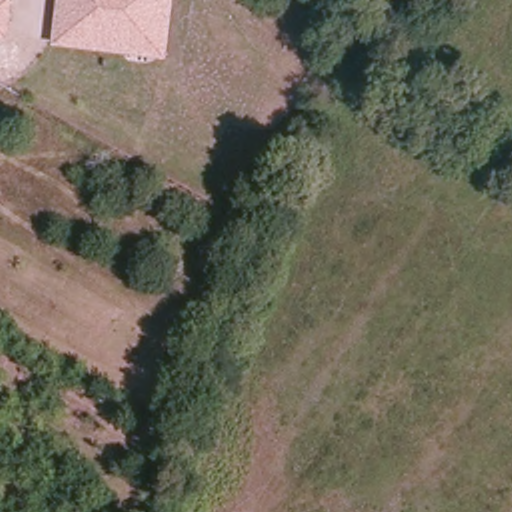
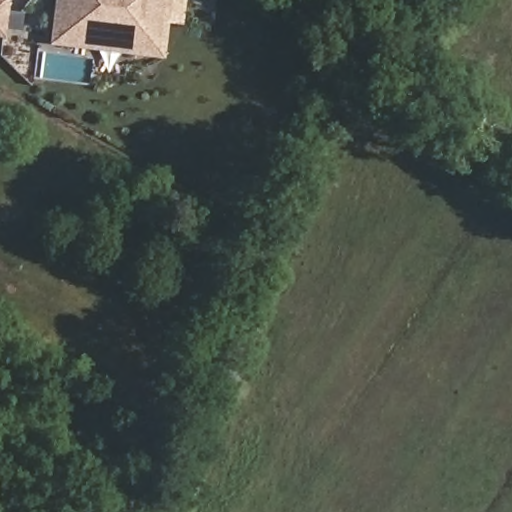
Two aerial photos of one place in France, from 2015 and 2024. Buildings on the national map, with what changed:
unchanged [(0,36),(0,0),(12,0),(9,37),(0,36)]
unchanged [(167,59),(51,44),(56,0),(174,0),(167,59)]

